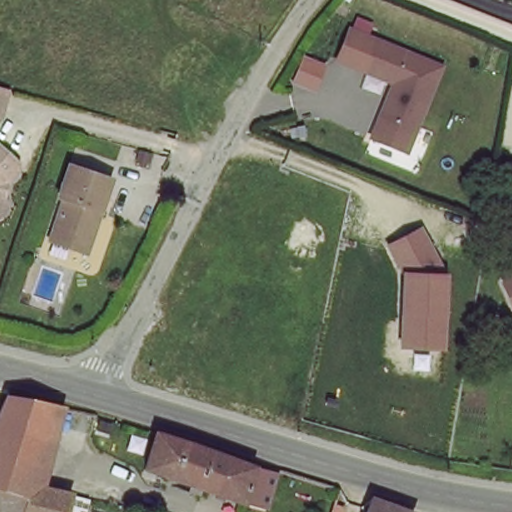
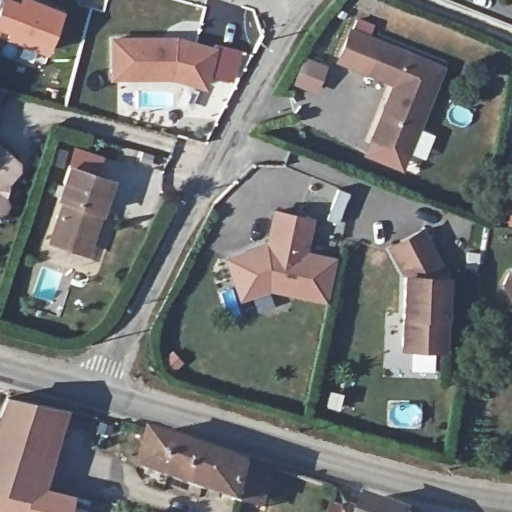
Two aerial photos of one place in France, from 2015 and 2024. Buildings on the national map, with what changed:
new [(0,35),(0,0),(38,0),(61,9),(45,54),(4,36),(0,35)]
unchanged [(411,155),(368,136),(391,84),(337,62),(353,29),(447,68),(411,155)]
new [(109,36),(177,36),(217,47),(206,89),(171,79),(110,80),(109,36)]
unchanged [(14,94),(6,123),(0,121),(0,90),(14,94)]
unchanged [(1,189),(5,214),(0,215),(0,147),(21,165),(1,189)]
unchanged [(89,249),(49,240),(68,164),(109,175),(89,249)]
new [(236,284),(229,265),(270,250),(276,217),(311,224),(305,258),(336,264),(329,304),(271,294),(253,300),(243,304),(236,284)]
unchanged [(400,349),(403,275),(387,250),(422,227),(448,274),(445,353),(400,349)]
unchanged [(512,272),(512,295),(506,282),(512,272)]
unchanged [(6,393),(65,404),(46,486),(74,493),(68,512),(0,512),(0,408),(6,393)]
unchanged [(257,467),(245,502),(146,474),(156,439),(257,467)]
unchanged [(348,497),(343,512),(333,512),(337,494),(348,497)]
unchanged [(371,503),(403,512),(368,512),(371,503)]

